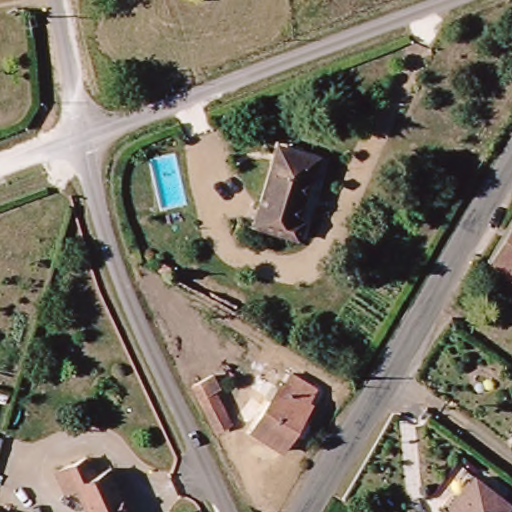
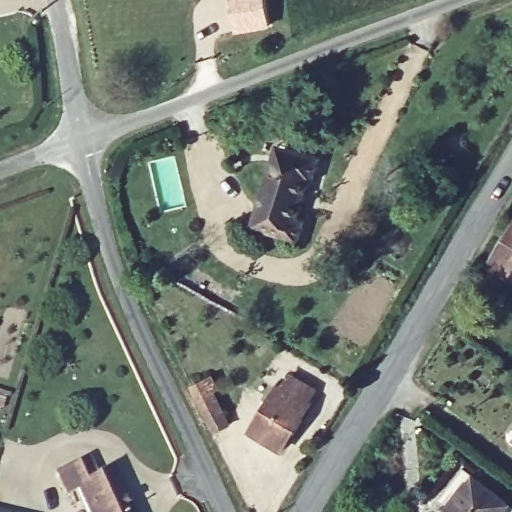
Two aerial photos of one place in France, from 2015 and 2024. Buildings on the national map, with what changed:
new [(272,27),(237,34),(230,0),(267,0),(272,27)]
unchanged [(323,155),(303,216),(309,219),(302,239),(257,225),(283,142),(323,155)]
unchanged [(512,279),(491,266),(512,230),(512,279)]
unchanged [(290,450),(258,431),(293,372),(325,390),(290,450)]
unchanged [(234,413),(217,421),(202,388),(219,380),(234,413)]
unchanged [(104,476),(122,470),(139,512),(93,512),(82,485),(72,489),(64,468),(95,457),(104,476)]
unchanged [(440,500),(464,468),(512,504),(512,512),(446,512),(450,507),(440,500)]

